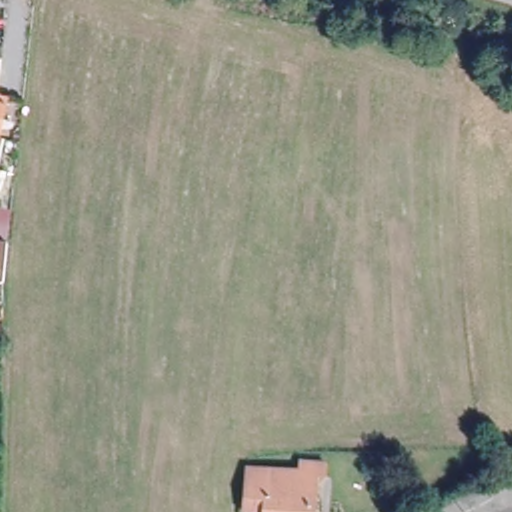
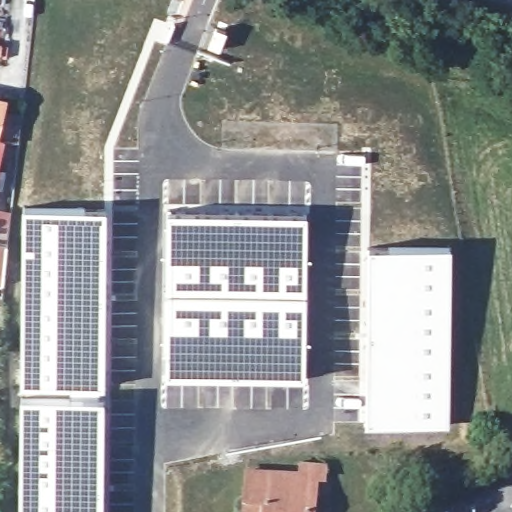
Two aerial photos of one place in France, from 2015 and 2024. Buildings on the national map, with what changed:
unchanged [(0,97),(6,99),(0,135),(0,97)]
unchanged [(0,172),(0,138),(7,139),(0,172)]
new [(19,453),(17,415),(20,390),(19,368),(22,205),(75,205),(109,202),(104,512),(18,512),(19,453)]
new [(165,205),(259,206),(260,210),(307,211),(305,382),(162,383),(162,290),(165,205)]
new [(0,282),(0,241),(8,243),(2,281),(0,282)]
new [(365,325),(362,277),(366,245),(452,245),(451,389),(449,428),(362,424),(362,400),(361,368),(365,325)]
unchanged [(242,497),(245,468),(298,472),(300,460),(334,463),(332,476),(312,475),(308,512),(260,512),(261,512),(241,511),(242,497)]

